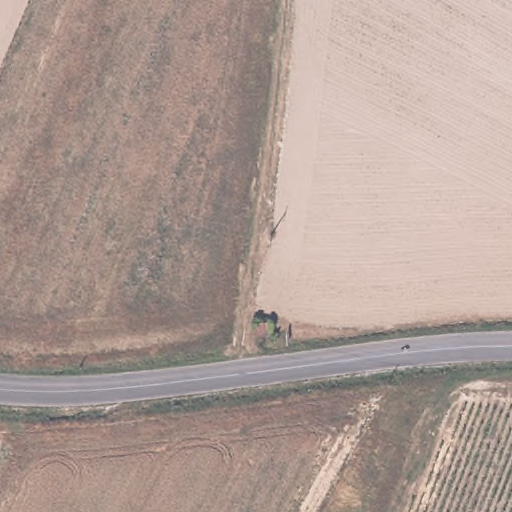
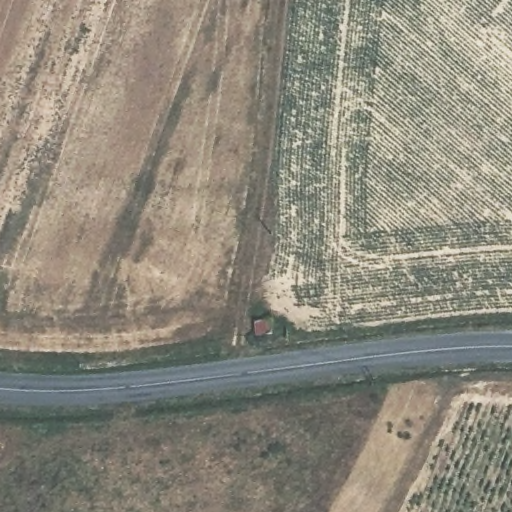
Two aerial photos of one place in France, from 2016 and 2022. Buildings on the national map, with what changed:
[]

